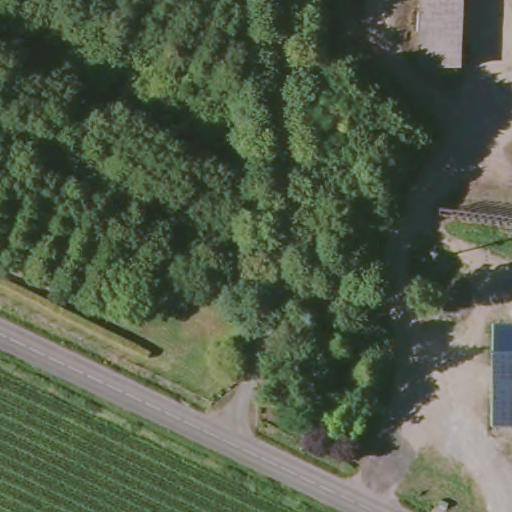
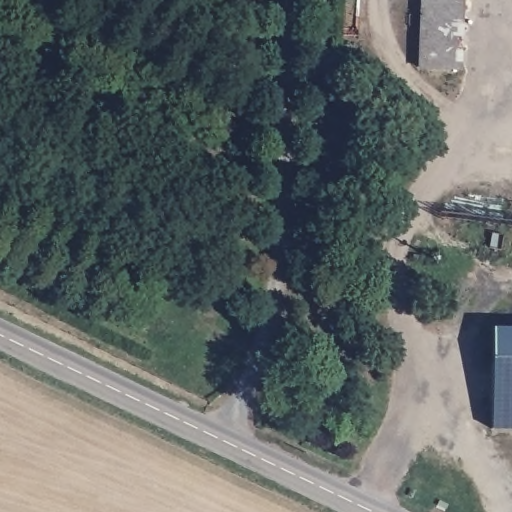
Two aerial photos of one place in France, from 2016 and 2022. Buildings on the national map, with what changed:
unchanged [(426,0),(468,0),(466,69),(424,67),(426,0)]
unchanged [(512,330),(512,430),(494,430),(495,330),(512,330)]

